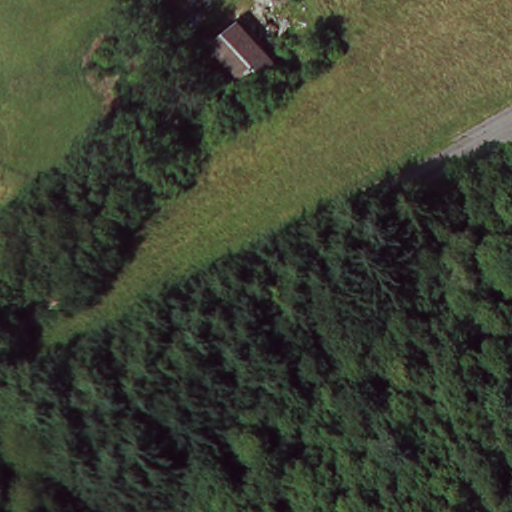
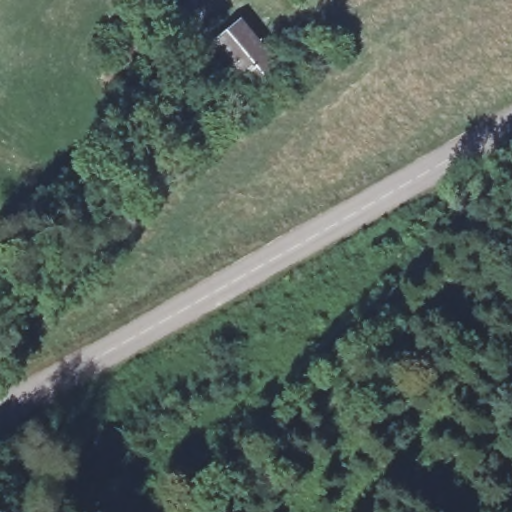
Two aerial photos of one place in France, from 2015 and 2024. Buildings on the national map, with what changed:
unchanged [(240,22),(263,50),(237,71),(216,42),(240,22)]

